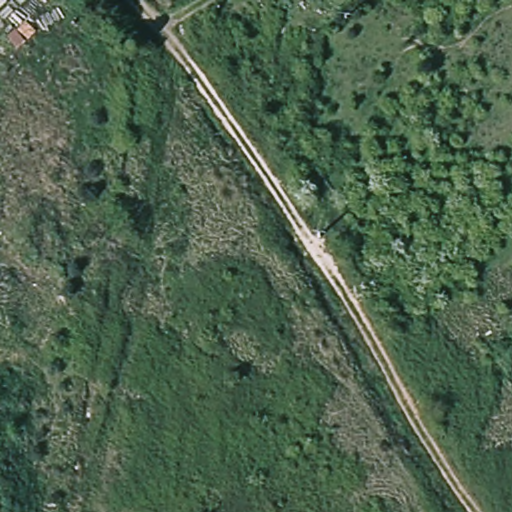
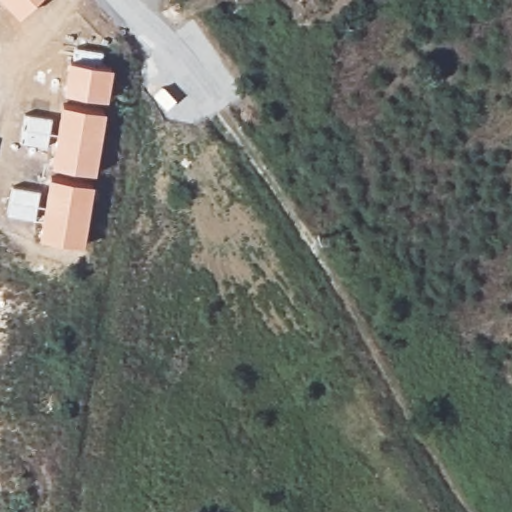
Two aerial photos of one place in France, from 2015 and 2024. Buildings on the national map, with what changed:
new [(5,0),(36,0),(20,15),(5,0)]
new [(75,47),(101,50),(99,66),(113,68),(108,100),(65,91),(70,60),(75,47)]
new [(61,103),(105,111),(96,174),(51,165),(61,103)]
new [(94,184),(83,246),(40,237),(50,177),(94,184)]

